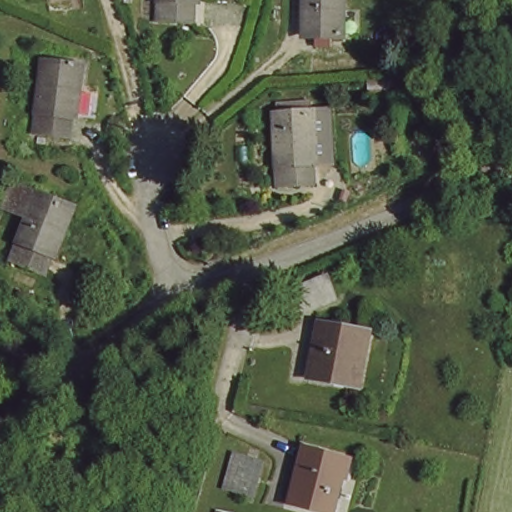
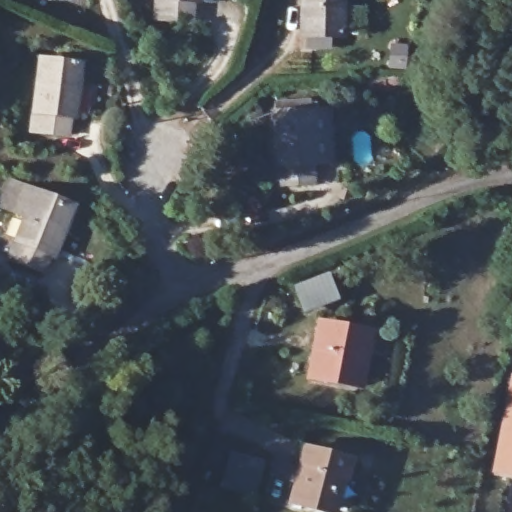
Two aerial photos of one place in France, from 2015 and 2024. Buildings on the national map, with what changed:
unchanged [(201,17),(161,14),(162,0),(203,0),(201,17)]
unchanged [(346,38),(304,37),(306,0),(349,0),(346,38)]
unchanged [(86,59),(79,107),(73,114),(70,134),(35,130),(45,55),(86,59)]
unchanged [(313,182),(282,188),(268,121),(273,120),(270,106),(300,99),(303,113),(305,112),(323,108),(333,158),(316,163),(310,165),(313,182)]
unchanged [(73,206),(53,255),(47,254),(39,271),(10,258),(30,211),(12,203),(20,186),(73,206)]
unchanged [(340,294),(313,308),(305,292),(332,277),(340,294)]
unchanged [(347,389),(311,382),(322,330),(372,337),(366,364),(361,392),(347,389)]
new [(493,473),(512,374),(512,477),(493,473)]
unchanged [(348,459),(334,509),(297,501),(310,452),(348,459)]
unchanged [(255,463),(246,497),(231,493),(239,460),(255,463)]

